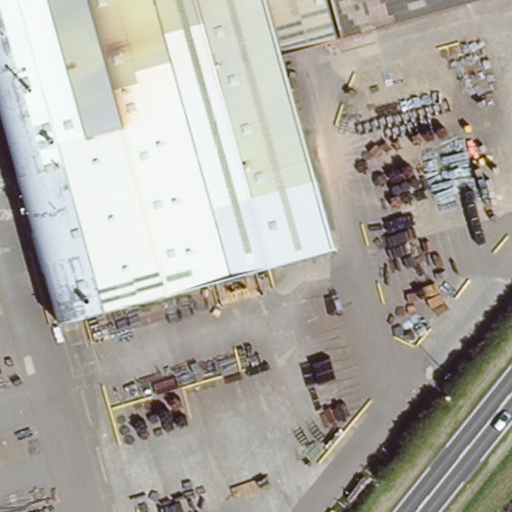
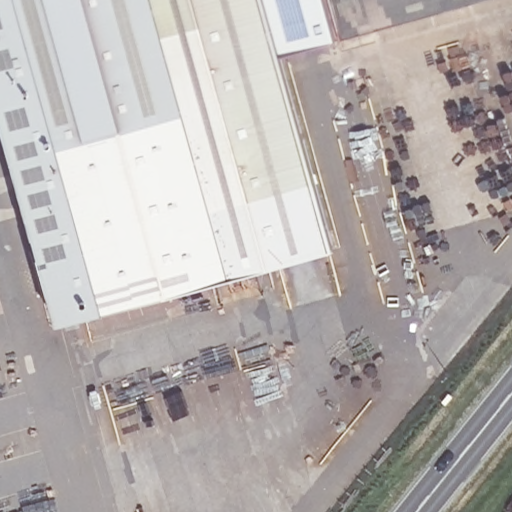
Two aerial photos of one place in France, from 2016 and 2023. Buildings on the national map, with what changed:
unchanged [(45,312),(0,140),(0,0),(85,0),(161,282),(45,312)]
unchanged [(161,282),(85,0),(244,0),(255,41),(310,241),(310,242),(161,282)]
unchanged [(244,0),(449,0),(270,46),(323,239),(310,242),(310,241),(255,41),(244,0)]

